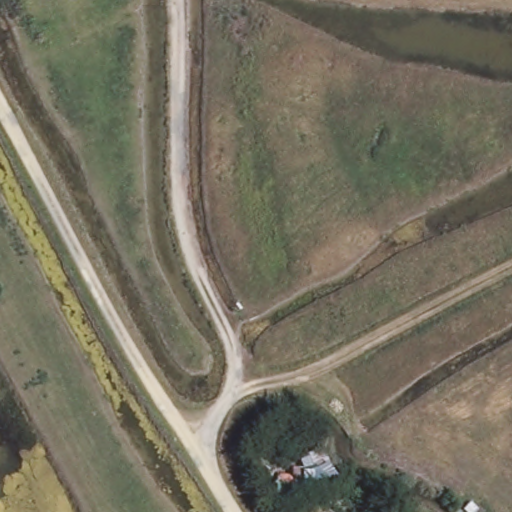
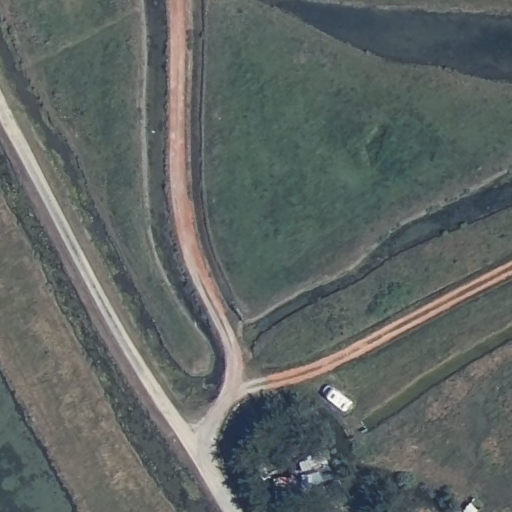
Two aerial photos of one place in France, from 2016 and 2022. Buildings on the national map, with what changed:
unchanged [(312,499),(300,492),(301,508),(270,503),(272,472),(304,474),(332,456),(344,483),(312,499)]

